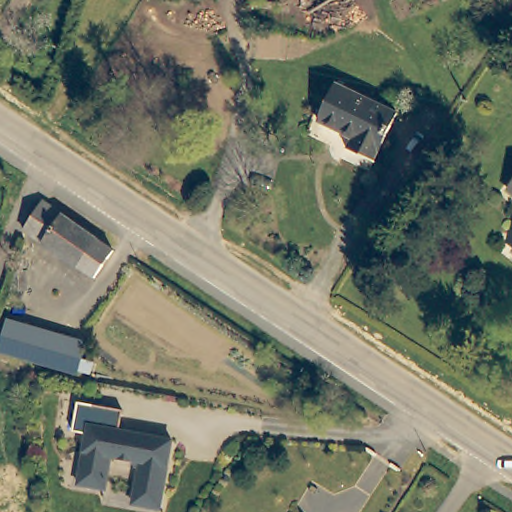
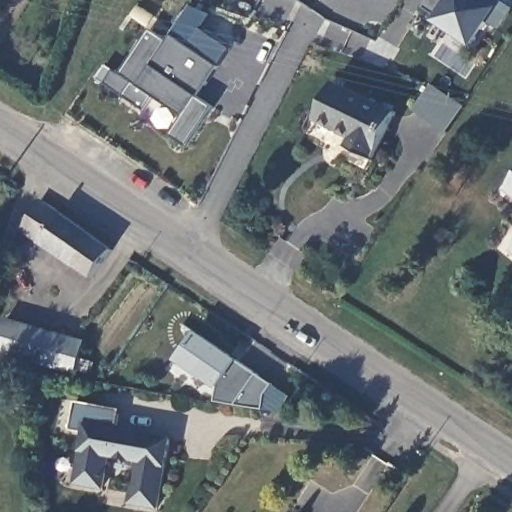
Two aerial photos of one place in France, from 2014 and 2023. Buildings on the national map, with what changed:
new [(493,23),(475,49),(434,23),(440,15),(426,8),(431,0),(504,0),(512,6),(512,14),(501,30),(493,23)]
new [(199,98),(214,108),(187,148),(171,137),(184,118),(156,98),(146,112),(125,98),(135,84),(122,75),(151,32),(168,43),(185,22),(225,57),(199,98)]
unchanged [(351,140),(312,122),(332,82),(394,113),(370,159),(348,149),(351,140)]
new [(448,135),(415,112),(433,85),(466,108),(448,135)]
unchanged [(512,183),(512,194),(506,190),(512,183)]
unchanged [(40,201),(108,248),(88,276),(22,230),(40,201)]
unchanged [(512,250),(512,253),(510,252),(512,250)]
unchanged [(4,327),(61,341),(59,352),(69,354),(74,356),(73,363),(85,366),(82,378),(58,371),(0,354),(0,349),(4,327)]
new [(265,397),(264,409),(217,402),(220,390),(177,362),(198,332),(240,361),(274,386),(265,397)]
unchanged [(105,491),(78,487),(86,437),(72,434),(77,405),(92,407),(122,412),(119,433),(171,442),(160,510),(133,506),(140,464),(110,459),(105,491)]

